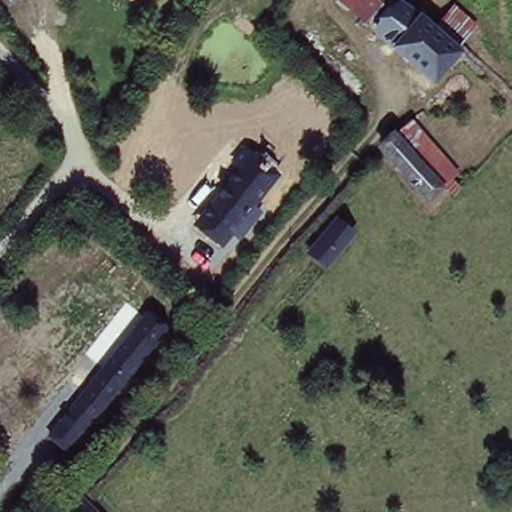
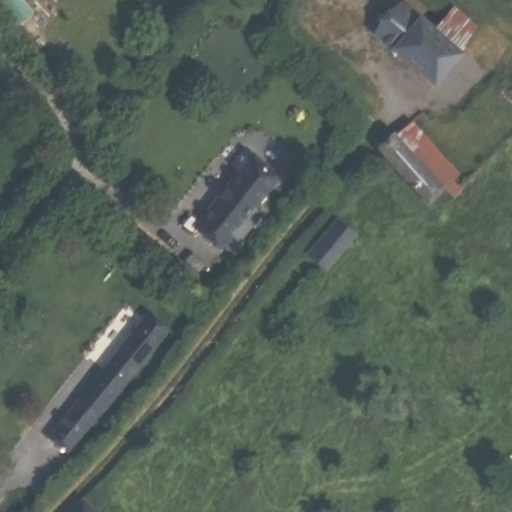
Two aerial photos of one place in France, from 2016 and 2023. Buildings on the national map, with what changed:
unchanged [(138,0),(140,0),(139,1),(138,0)]
unchanged [(381,10),(390,1),(427,31),(451,3),(478,26),(455,51),(461,58),(430,91),(362,31),(381,10)]
unchanged [(411,116),(425,130),(466,175),(451,188),(446,194),(433,207),(381,151),(399,130),(411,116)]
unchanged [(282,174),(224,248),(199,228),(244,171),(235,164),(247,148),(282,174)]
unchanged [(353,238),(322,276),(296,256),(327,219),(353,238)]
unchanged [(47,444),(69,416),(145,315),(162,328),(86,429),(67,459),(47,444)]
unchanged [(88,500),(100,512),(77,512),(88,500)]

